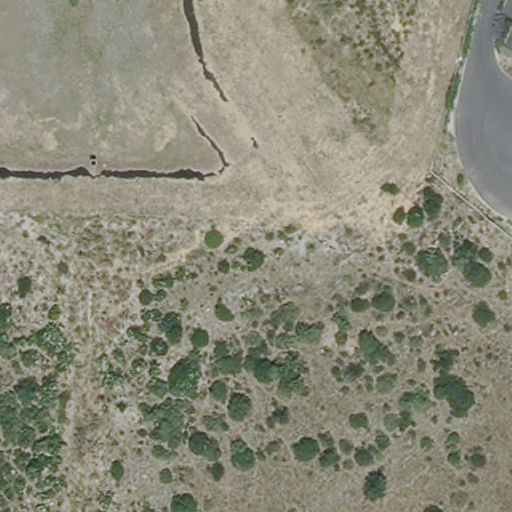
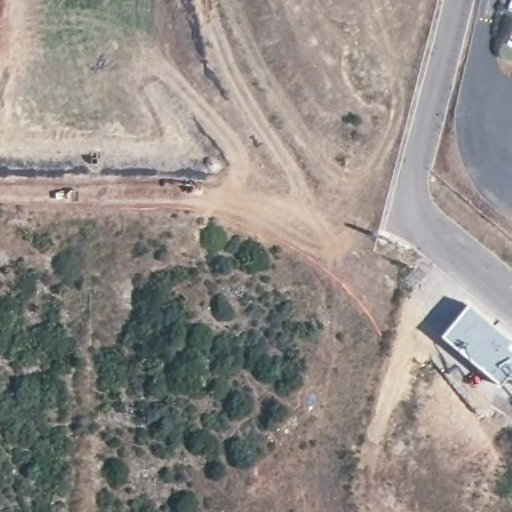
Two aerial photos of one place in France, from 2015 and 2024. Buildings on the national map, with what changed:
new [(512,339),(512,368),(498,385),(440,336),(467,304),(512,339)]

